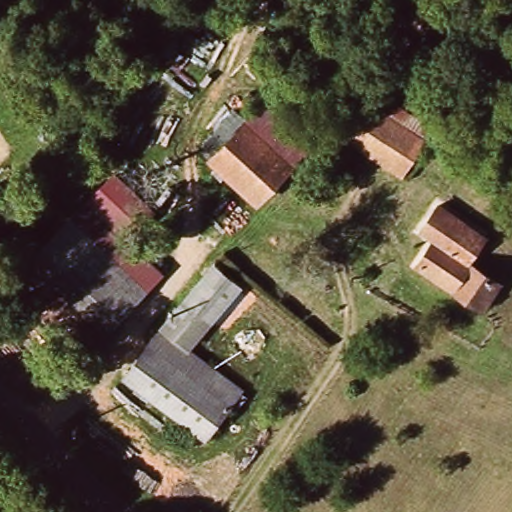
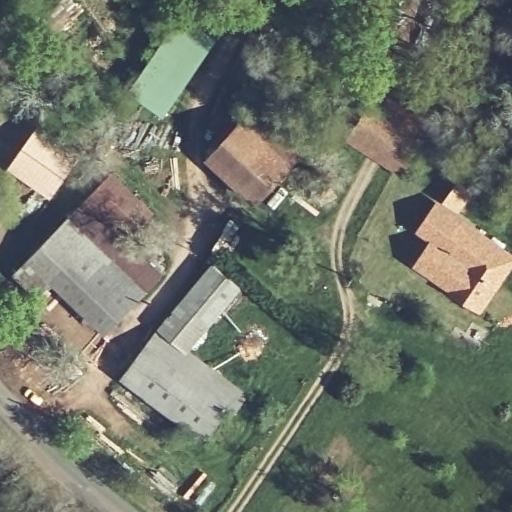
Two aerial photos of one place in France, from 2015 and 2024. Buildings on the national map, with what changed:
new [(130,93),(184,15),(219,40),(165,116),(130,93)]
unchanged [(383,94),(431,126),(417,146),(368,114),(383,94)]
unchanged [(310,139),(293,160),(242,119),(261,98),(310,139)]
unchanged [(417,146),(402,169),(352,138),(368,114),(417,146)]
unchanged [(293,160),(256,207),(206,159),(242,119),(293,160)]
new [(83,156),(52,198),(9,167),(40,125),(83,156)]
unchanged [(117,171),(149,203),(116,237),(106,226),(85,205),(117,171)]
unchanged [(61,269),(32,296),(12,274),(85,205),(106,226),(89,242),(61,269)]
unchanged [(480,308),(417,269),(435,242),(423,235),(441,205),(483,233),(465,263),(497,282),(480,308)]
unchanged [(113,323),(61,269),(89,242),(106,226),(116,237),(157,281),(141,296),(113,323)]
unchanged [(214,265),(241,288),(187,354),(159,332),(214,265)]
unchanged [(159,332),(187,354),(234,393),(198,437),(122,376),(159,332)]

